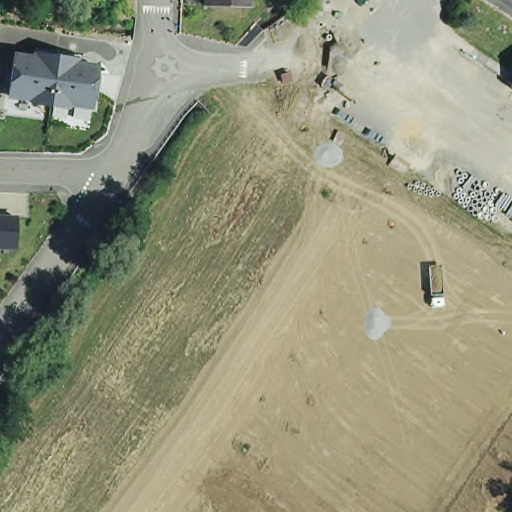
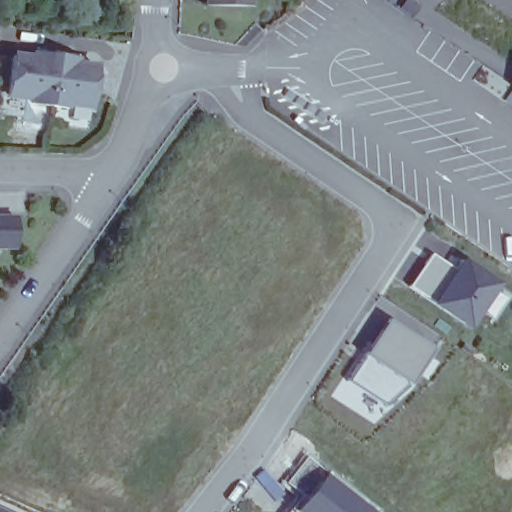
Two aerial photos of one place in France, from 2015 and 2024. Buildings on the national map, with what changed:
unchanged [(207,0),(201,0),(241,0),(240,1),(237,1),(237,16),(206,15),(207,0)]
unchanged [(6,98),(10,48),(97,55),(94,110),(6,98)]
unchanged [(505,83),(512,73),(512,89),(505,83)]
unchanged [(0,250),(0,213),(14,213),(17,250),(0,250)]
new [(457,271),(462,264),(495,286),(467,325),(410,287),(430,255),(457,271)]
new [(435,348),(412,386),(386,407),(350,381),(391,319),(435,348)]
new [(0,512),(0,506),(14,512),(0,512)]

